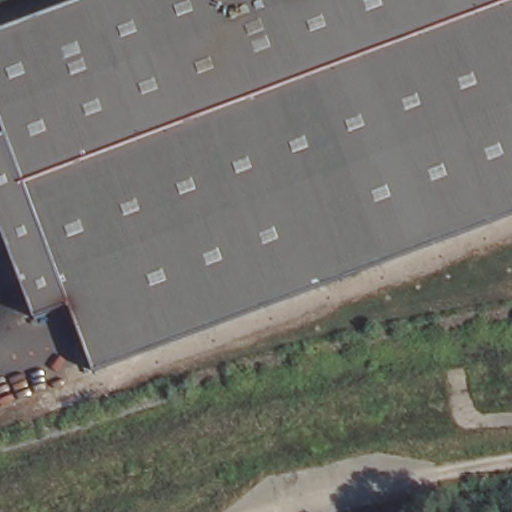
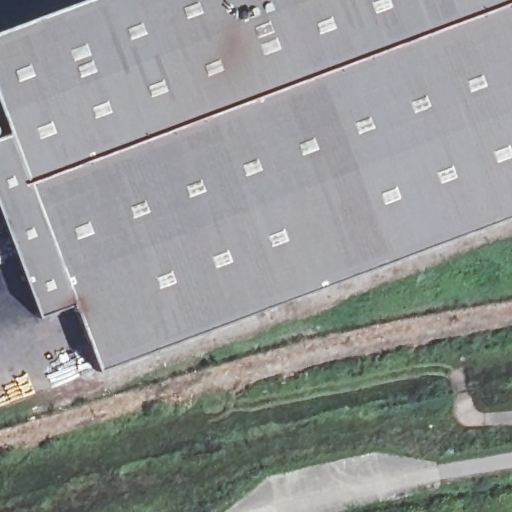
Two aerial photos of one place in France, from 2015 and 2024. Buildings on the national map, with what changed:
unchanged [(0,32),(86,0),(512,0),(512,218),(91,376),(66,309),(32,323),(0,239),(0,137),(1,137),(0,134),(0,32)]

